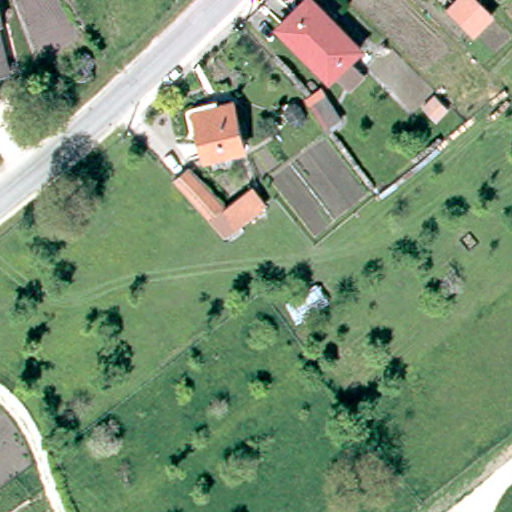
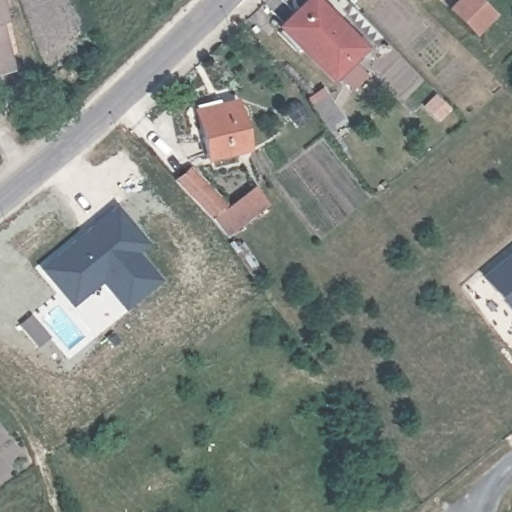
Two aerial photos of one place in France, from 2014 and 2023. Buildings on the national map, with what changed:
unchanged [(330,68),(325,73),(274,21),(295,0),(314,0),(356,42),(344,54),(360,69),(345,84),(330,68)]
unchanged [(450,10),(459,0),(477,0),(493,15),(475,34),(450,10)]
unchanged [(0,21),(0,9),(2,20),(0,21)]
unchanged [(0,71),(0,32),(9,69),(0,71)]
unchanged [(342,118),(326,130),(307,100),(309,98),(322,89),(342,118)]
unchanged [(196,103),(218,97),(217,94),(234,91),(245,138),(205,148),(196,103)]
unchanged [(438,119),(425,105),(436,94),(449,108),(438,119)]
unchanged [(224,203),(209,216),(175,180),(190,166),(224,203)]
unchanged [(250,186),(266,204),(225,233),(209,216),(224,203),(250,186)]
new [(137,252),(160,280),(122,311),(100,282),(70,306),(39,268),(116,204),(148,243),(137,252)]
new [(485,276),(512,254),(512,310),(485,276)]

